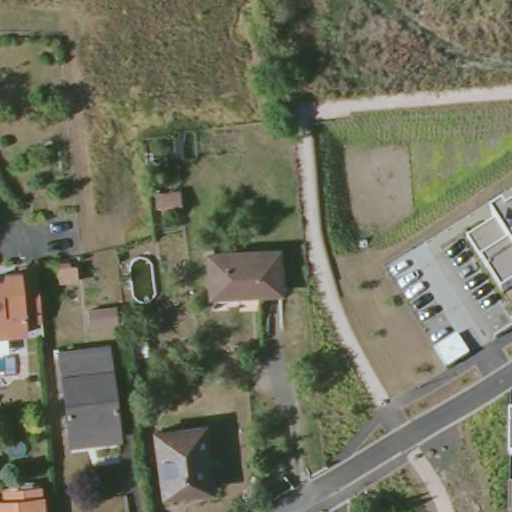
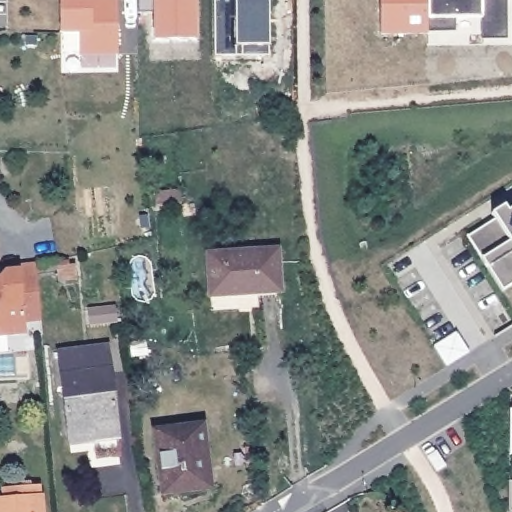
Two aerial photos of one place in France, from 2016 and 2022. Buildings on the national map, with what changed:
new [(79,57),(79,35),(59,35),(59,0),(118,0),(118,57),(79,57)]
new [(155,39),(155,12),(139,12),(138,0),(195,0),(196,39),(155,39)]
new [(217,56),(216,0),(272,0),(272,57),(217,56)]
new [(483,36),(483,21),(457,21),(457,30),(428,31),(428,35),(380,35),(380,0),(508,0),(509,35),(483,36)]
unchanged [(182,205),(157,208),(155,196),(180,193),(182,205)]
new [(491,214),(503,207),(506,212),(512,208),(512,283),(502,290),(481,259),(467,237),(495,220),(491,214)]
unchanged [(208,255),(277,251),(280,291),(211,296),(208,255)]
unchanged [(57,263),(66,262),(67,268),(74,268),(74,281),(59,282),(57,263)]
unchanged [(21,267),(21,271),(37,269),(41,311),(25,312),(26,330),(3,332),(1,328),(0,328),(0,275),(6,268),(21,267)]
new [(455,331),(469,352),(445,367),(432,346),(455,331)]
unchanged [(130,345),(144,343),(146,356),(132,358),(130,345)]
unchanged [(70,433),(59,353),(107,348),(118,437),(94,441),(71,444),(70,433)]
new [(512,411),(512,455),(508,455),(509,411),(512,411)]
unchanged [(155,433),(201,427),(205,458),(200,458),(204,488),(163,493),(155,433)]
new [(512,481),(512,512),(509,512),(509,481),(512,481)]
unchanged [(3,502),(3,490),(17,489),(39,487),(41,512),(0,512),(0,502),(3,502)]

